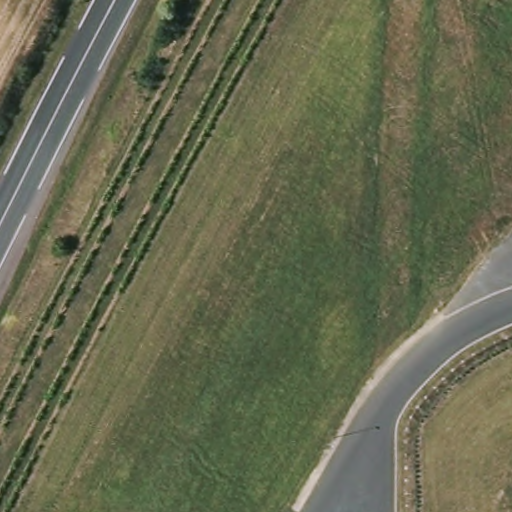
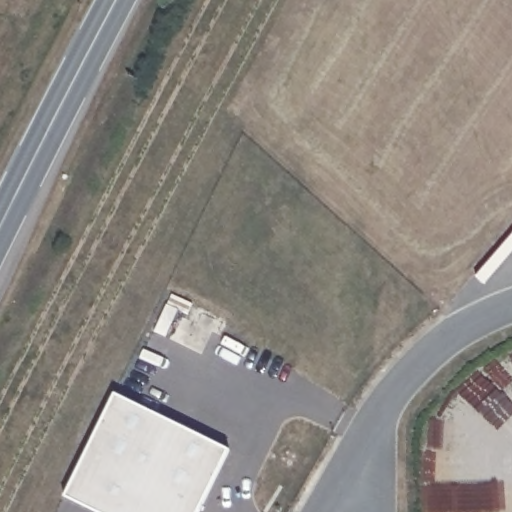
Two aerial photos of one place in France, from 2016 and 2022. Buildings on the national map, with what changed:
new [(93,512),(64,497),(114,393),(229,450),(199,512),(93,512)]

